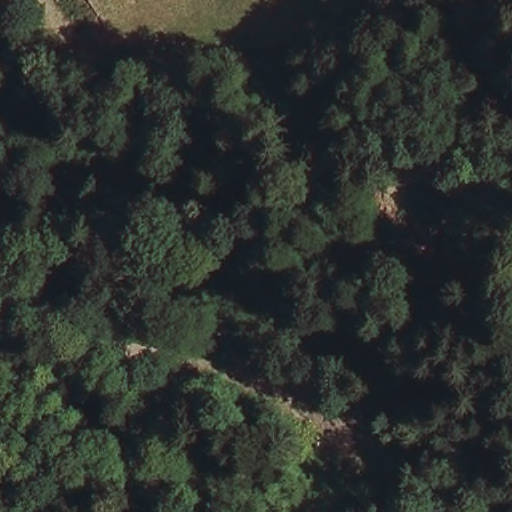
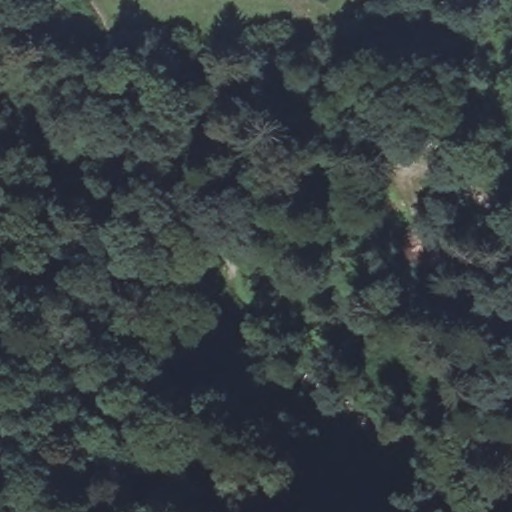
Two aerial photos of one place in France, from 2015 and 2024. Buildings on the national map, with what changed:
[]

